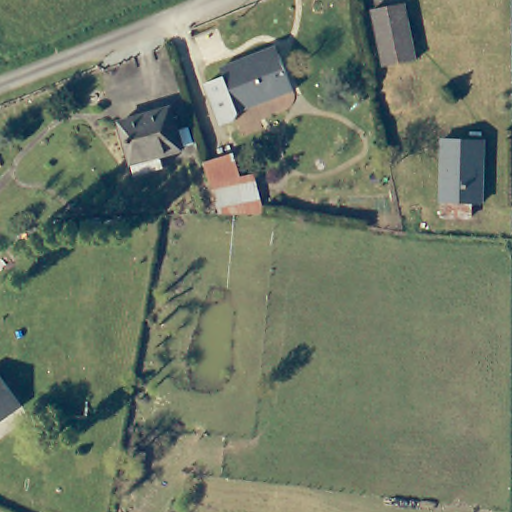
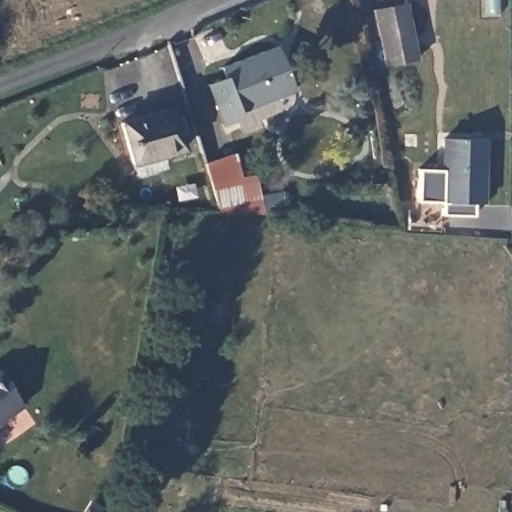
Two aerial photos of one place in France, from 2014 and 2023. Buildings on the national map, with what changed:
unchanged [(373,7),(406,1),(413,40),(417,56),(383,63),(373,7)]
unchanged [(247,107),(244,114),(230,119),(215,77),(233,70),(230,61),(287,40),(303,85),(247,106),(247,107)]
unchanged [(162,153),(165,165),(136,174),(120,119),(174,105),(184,148),(162,153)]
unchanged [(443,137),(484,138),(482,200),(475,200),(475,214),(441,212),(443,137)]
unchanged [(252,173),(267,213),(222,213),(205,161),(234,154),(242,176),(252,173)]
unchanged [(0,419),(0,377),(21,405),(0,419)]

